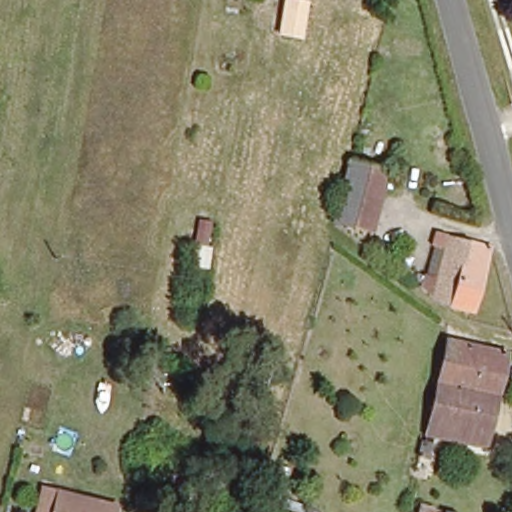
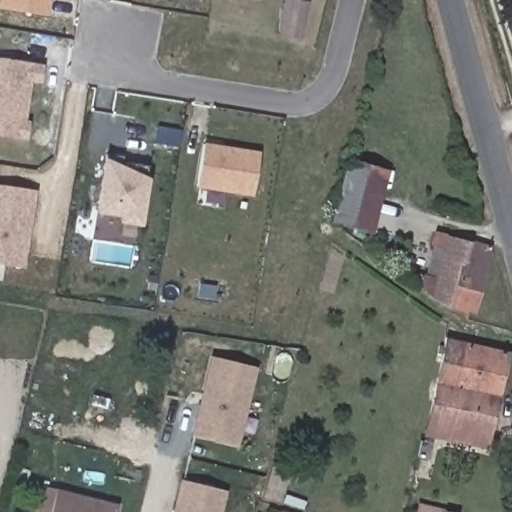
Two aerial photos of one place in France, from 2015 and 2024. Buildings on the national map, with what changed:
new [(47,16),(1,8),(2,0),(50,0),(47,16)]
unchanged [(305,2),(309,2),(298,40),(278,35),(287,0),(299,0),(305,2)]
new [(43,67),(40,82),(31,81),(24,122),(29,123),(26,140),(0,135),(0,59),(43,67)]
new [(261,154),(255,196),(198,187),(204,145),(261,154)]
new [(123,157),(123,162),(148,166),(139,224),(122,222),(123,215),(99,212),(107,155),(123,157)]
unchanged [(340,217),(353,160),(401,172),(396,191),(383,187),(370,246),(353,235),(338,225),(340,217)]
new [(36,190),(24,268),(0,265),(0,185),(36,190)]
demolished [(188,238),(192,214),(207,217),(202,241),(188,238)]
unchanged [(427,276),(442,281),(454,236),(494,247),(477,311),(454,307),(425,287),(427,276)]
unchanged [(450,440),(439,437),(430,475),(418,472),(425,441),(428,442),(451,338),(455,339),(455,342),(509,354),(492,436),(489,447),(450,440)]
new [(235,449),(195,438),(214,363),(254,374),(235,449)]
new [(176,512),(183,487),(223,497),(219,512),(176,512)]
unchanged [(55,493),(108,508),(114,510),(113,512),(34,512),(40,488),(55,493)]
unchanged [(461,512),(420,512),(422,503),(461,512)]

